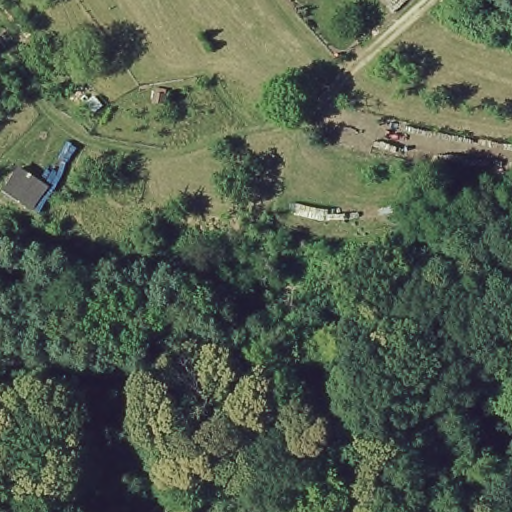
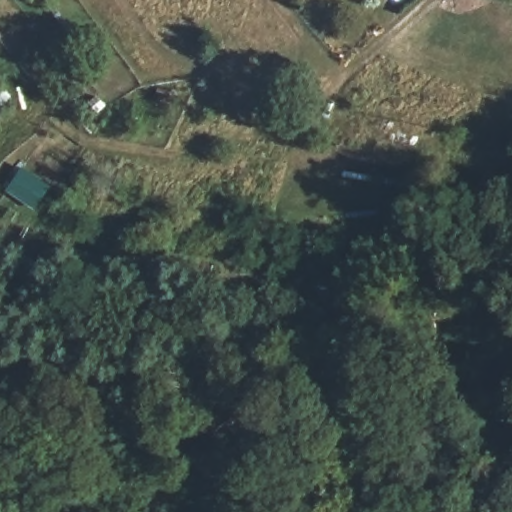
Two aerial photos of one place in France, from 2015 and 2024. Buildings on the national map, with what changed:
unchanged [(39,219),(6,194),(27,166),(59,190),(39,219)]

